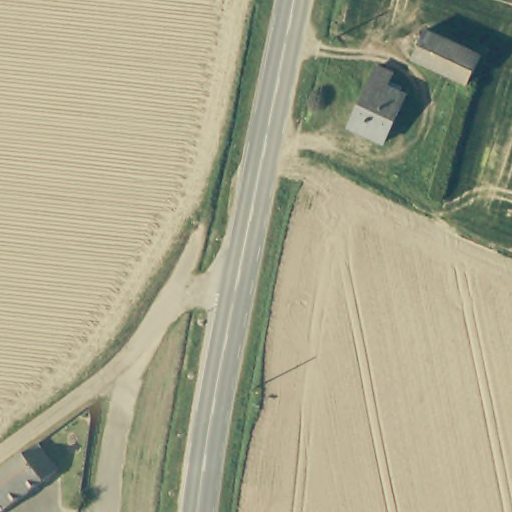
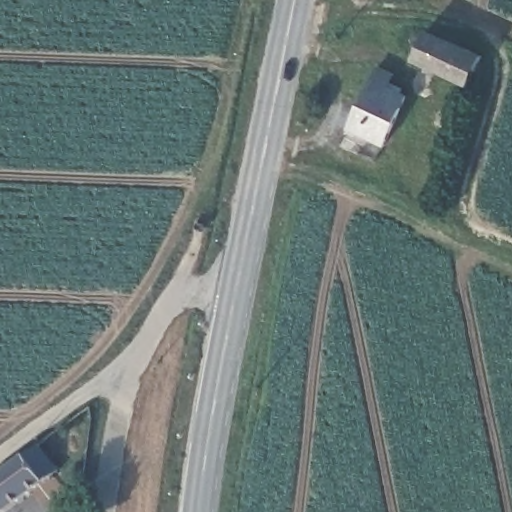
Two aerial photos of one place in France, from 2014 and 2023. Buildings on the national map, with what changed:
unchanged [(470,86),(417,64),(429,36),(480,58),(470,86)]
unchanged [(395,78),(388,93),(407,102),(386,147),(350,131),(376,70),(395,78)]
unchanged [(20,454),(45,487),(8,512),(0,512),(0,471),(20,454)]

